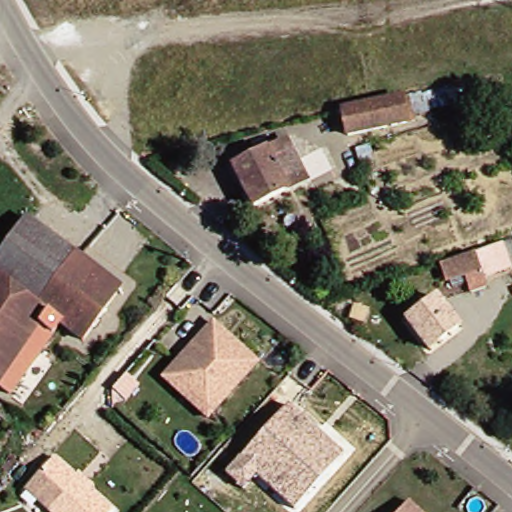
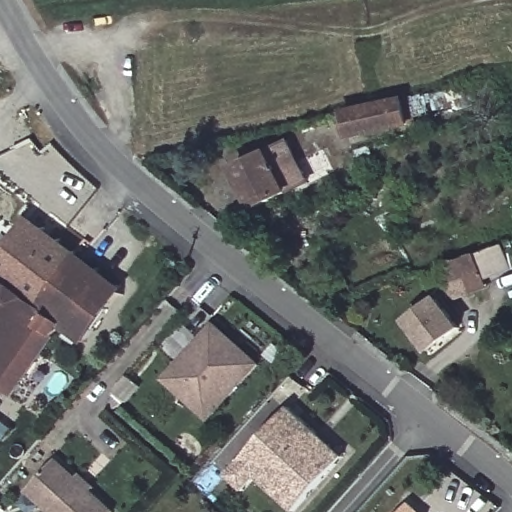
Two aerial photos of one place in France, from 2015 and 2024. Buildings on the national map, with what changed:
unchanged [(404,102),(405,105),(410,129),(402,130),(342,144),(337,117),(404,102)]
unchanged [(228,169),(264,151),(282,142),(304,183),(285,193),(248,210),(228,169)]
unchanged [(0,397),(0,252),(21,222),(81,263),(119,289),(79,346),(55,329),(5,400),(0,397)]
unchanged [(442,285),(436,268),(470,256),(498,246),(506,244),(512,259),(512,267),(506,270),(479,280),(476,273),(442,285)]
unchanged [(460,329),(429,353),(406,323),(438,299),(460,329)]
unchanged [(176,370),(214,327),(259,366),(214,417),(210,422),(165,382),(176,370)]
unchanged [(224,478),(237,464),(285,409),(315,436),(341,459),(334,466),(293,512),(291,512),(254,479),(241,493),(224,478)]
unchanged [(56,462),(76,479),(79,476),(95,489),(92,494),(112,512),(48,512),(27,494),(56,462)]
unchanged [(406,505),(413,512),(399,512),(406,505)]

